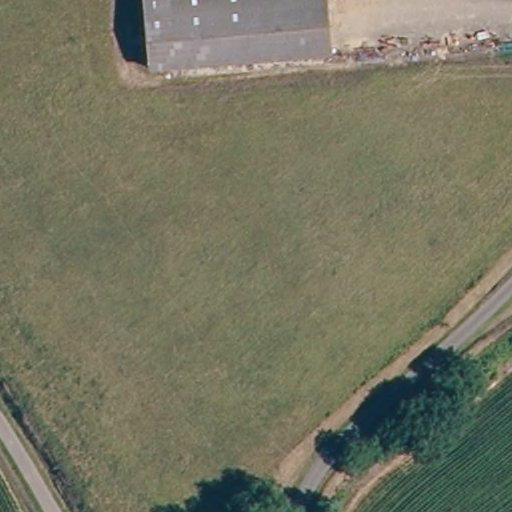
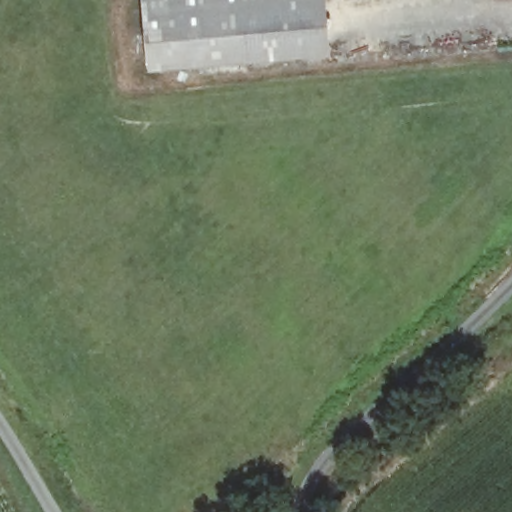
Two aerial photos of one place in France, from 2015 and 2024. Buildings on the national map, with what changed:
unchanged [(327,4),(146,21),(145,0),(327,0),(327,4)]
unchanged [(327,4),(332,55),(152,70),(146,21),(327,4)]

